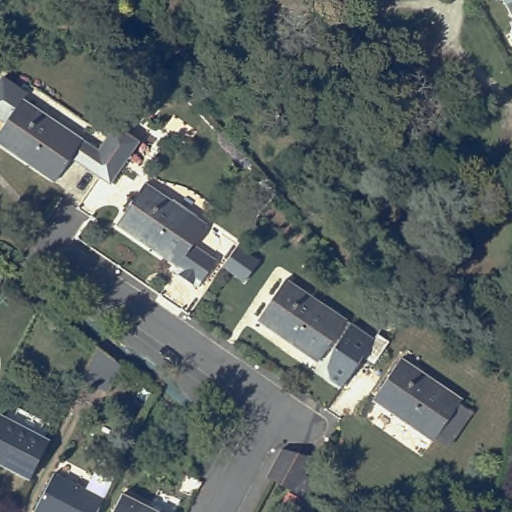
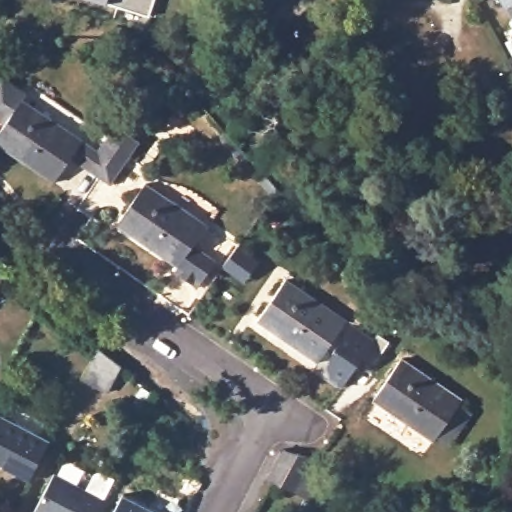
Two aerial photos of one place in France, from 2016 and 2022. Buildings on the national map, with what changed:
new [(106,3),(97,0),(156,0),(152,15),(106,3)]
unchanged [(508,0),(512,0),(512,7),(508,0)]
unchanged [(59,177),(0,137),(0,133),(27,94),(88,135),(59,177)]
unchanged [(110,184),(99,175),(88,168),(116,126),(127,134),(138,142),(110,184)]
unchanged [(212,220),(198,240),(221,257),(203,283),(179,267),(183,262),(121,220),(150,178),(212,220)]
unchanged [(0,285),(0,276),(4,278),(0,285)]
unchanged [(258,321),(286,279),(346,322),(318,363),(258,321)]
unchanged [(81,379),(98,348),(121,367),(108,392),(81,379)]
unchanged [(444,442),(431,433),(429,437),(368,396),(397,354),(457,395),(455,399),(467,408),(444,442)]
unchanged [(0,416),(49,441),(29,479),(0,465),(0,416)]
unchanged [(271,479),(267,478),(282,449),(311,458),(314,458),(305,475),(316,481),(307,499),(271,479)]
unchanged [(96,512),(37,512),(35,511),(54,474),(86,491),(95,474),(100,473),(113,479),(96,512)]
unchanged [(123,493),(159,512),(113,512),(123,493)]

